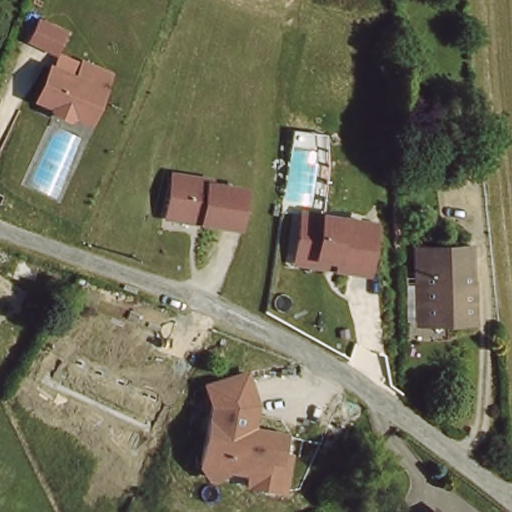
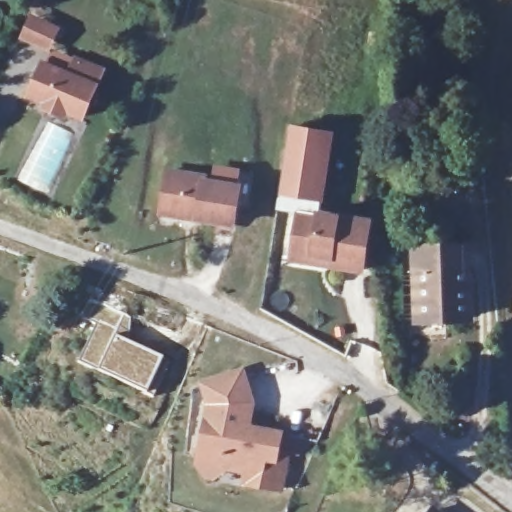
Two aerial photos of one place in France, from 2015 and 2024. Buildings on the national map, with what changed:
unchanged [(58,22),(47,46),(19,34),(29,9),(58,22)]
unchanged [(101,66),(83,113),(67,107),(61,110),(49,105),(46,98),(30,92),(43,61),(69,71),(75,56),(101,66)]
new [(276,211),(279,195),(290,126),(334,132),(324,203),(320,210),(294,209),(293,215),(276,211)]
unchanged [(200,173),(200,177),(235,181),(231,218),(195,214),(195,210),(159,206),(163,169),(200,173)]
unchanged [(291,250),(294,209),(366,213),(363,262),(330,260),(290,258),(291,250)]
unchanged [(410,246),(462,247),(459,309),(437,307),(436,315),(414,313),(417,267),(410,267),(410,246)]
new [(95,370),(78,363),(95,323),(83,318),(90,300),(130,318),(129,343),(161,358),(168,360),(152,396),(95,370)]
unchanged [(245,362),(256,398),(249,401),(249,423),(280,428),(283,458),(279,483),(242,480),(241,469),(222,468),(210,478),(194,460),(207,405),(199,375),(245,362)]
unchanged [(431,511),(432,512),(430,512),(431,511)]

